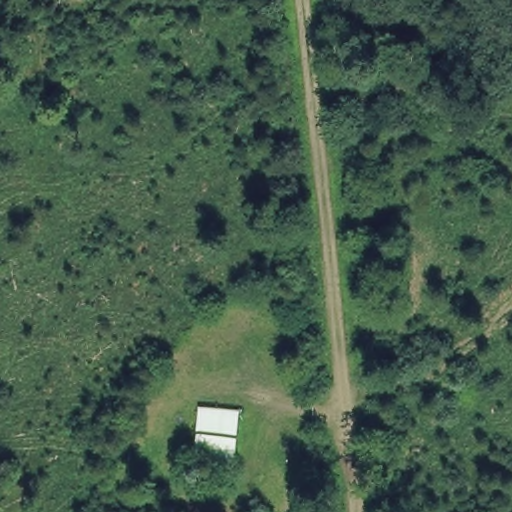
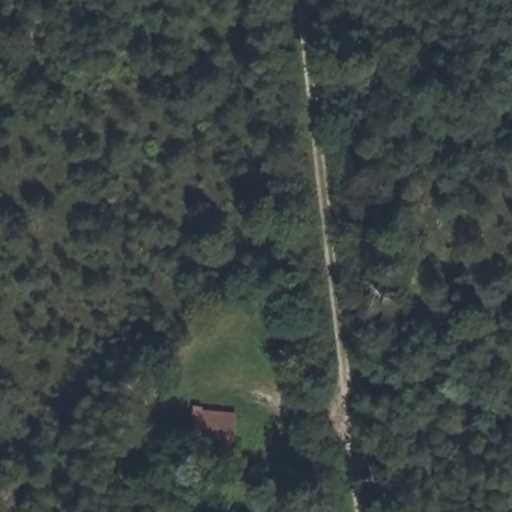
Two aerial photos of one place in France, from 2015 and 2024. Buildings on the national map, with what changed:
unchanged [(236,476),(196,472),(203,411),(241,416),(236,476)]

